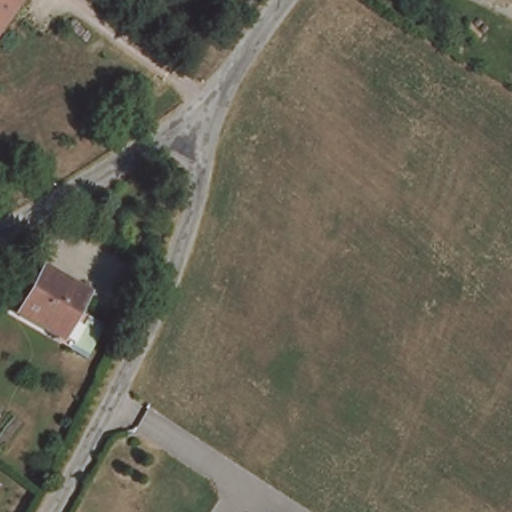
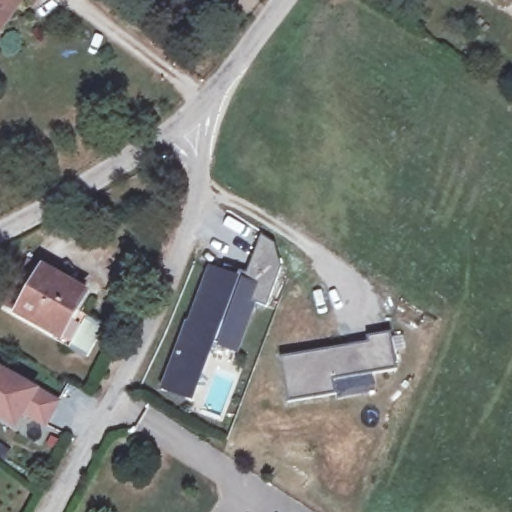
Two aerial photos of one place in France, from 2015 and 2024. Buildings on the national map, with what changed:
unchanged [(0,32),(0,0),(23,0),(3,28),(0,32)]
new [(190,322),(192,323),(213,267),(225,271),(228,263),(243,269),(240,277),(247,279),(265,232),(278,241),(286,265),(271,304),(260,300),(242,348),(224,341),(226,335),(220,333),(200,384),(195,399),(166,388),(172,374),(190,322)]
unchanged [(72,349),(61,343),(63,339),(9,304),(35,261),(90,295),(80,312),(86,316),(92,319),(106,329),(88,358),(73,349),(72,349)]
new [(336,394),(287,402),(280,358),(368,343),(367,337),(390,333),(397,370),(334,381),(336,394)]
unchanged [(50,423),(29,411),(21,425),(0,414),(0,366),(62,399),(50,423)]

